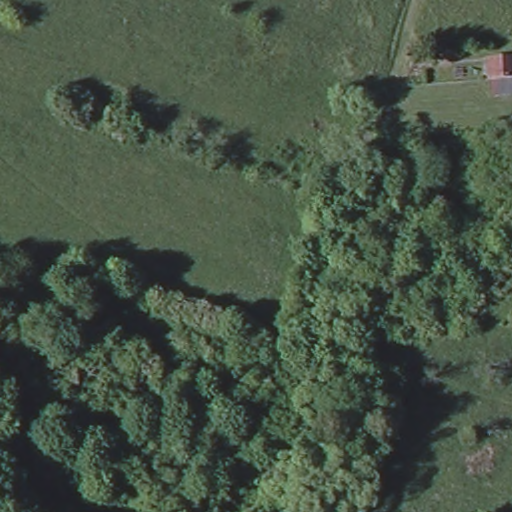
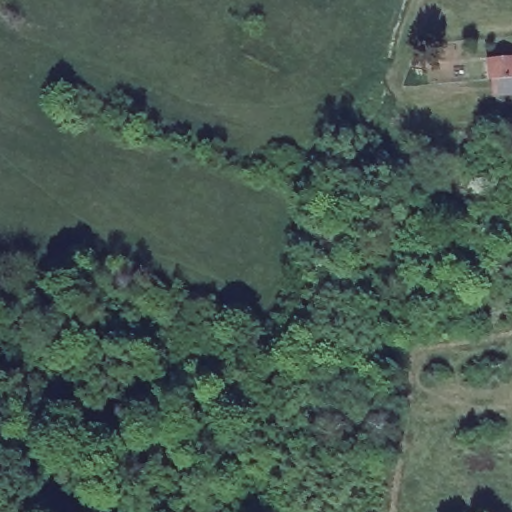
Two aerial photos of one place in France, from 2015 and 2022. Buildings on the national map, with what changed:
unchanged [(484,77),(485,59),(512,57),(512,75),(484,77)]

